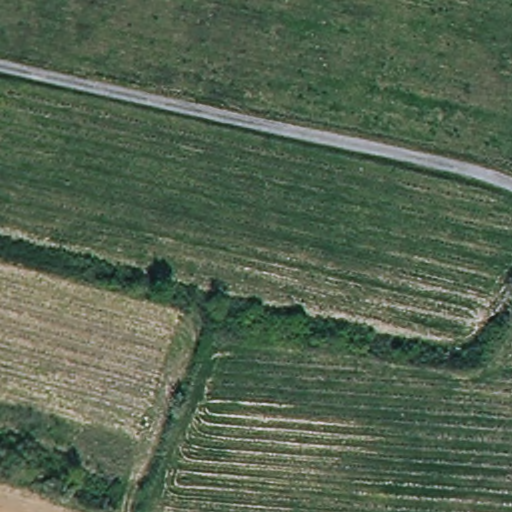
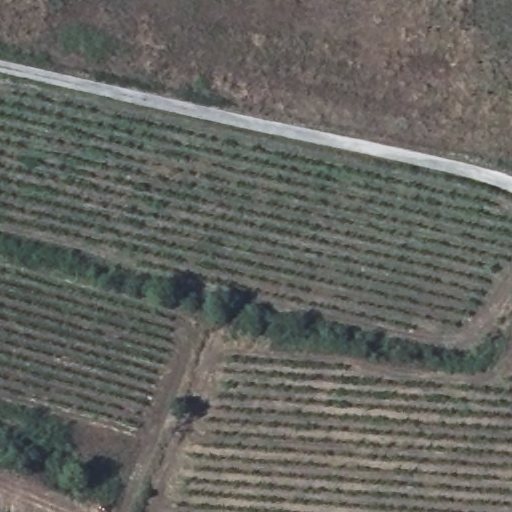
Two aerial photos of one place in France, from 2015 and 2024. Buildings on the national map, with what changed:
[]

